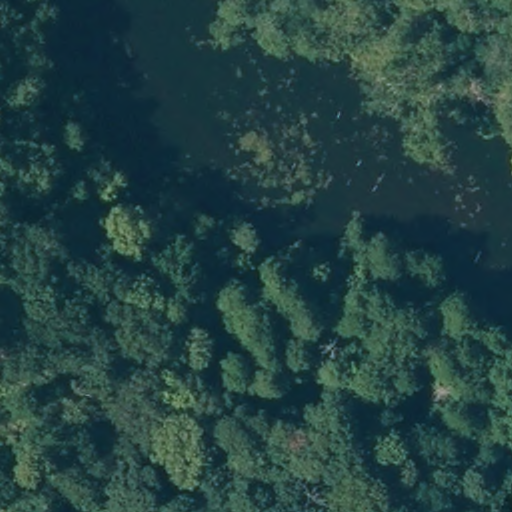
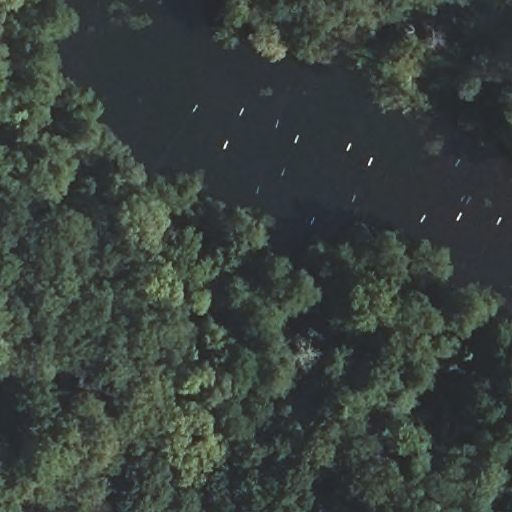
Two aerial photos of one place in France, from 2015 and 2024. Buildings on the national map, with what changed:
[]

